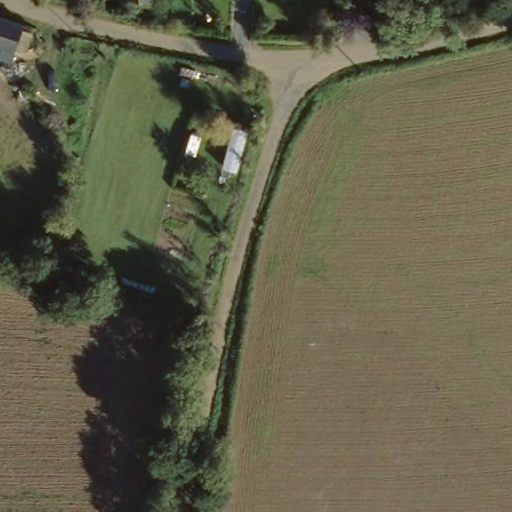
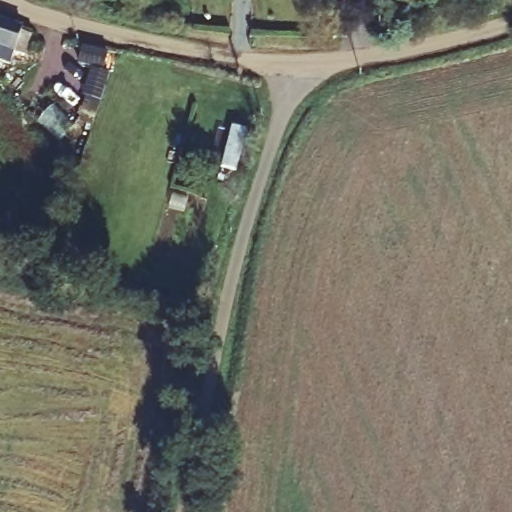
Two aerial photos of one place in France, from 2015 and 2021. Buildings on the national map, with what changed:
unchanged [(6,14),(21,19),(31,23),(41,25),(33,47),(25,45),(21,56),(4,49),(0,48),(0,13),(6,14)]

